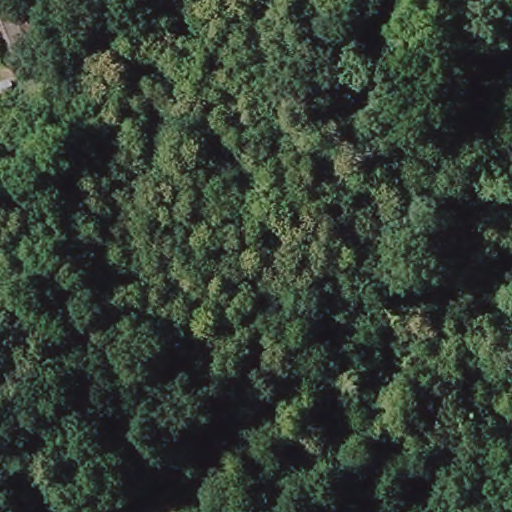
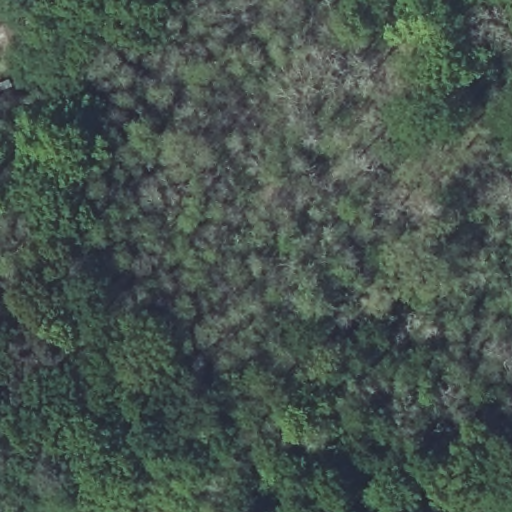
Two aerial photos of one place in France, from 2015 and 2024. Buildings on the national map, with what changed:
unchanged [(0,0),(2,0),(26,56),(5,65),(0,53),(0,0)]

